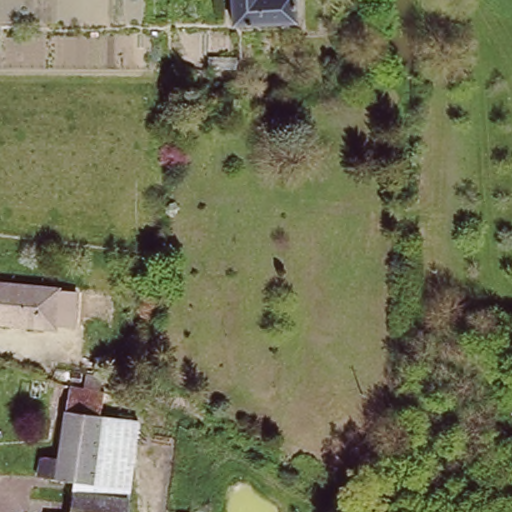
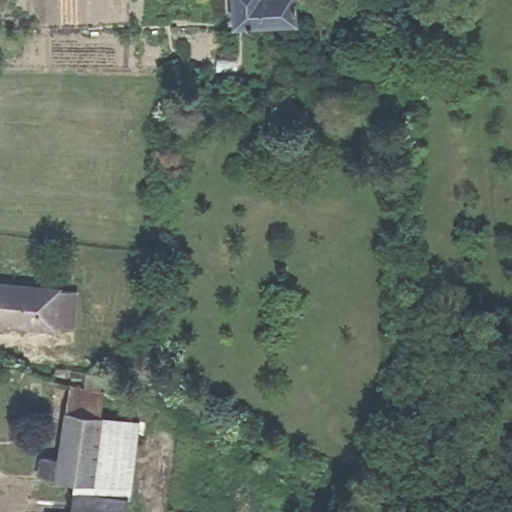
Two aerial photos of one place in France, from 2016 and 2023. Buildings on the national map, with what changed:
unchanged [(259,0),(291,0),(291,30),(232,29),(232,0),(259,0)]
unchanged [(74,330),(0,325),(0,289),(77,297),(74,330)]
unchanged [(67,418),(71,386),(110,392),(105,423),(67,418)]
unchanged [(105,423),(96,489),(68,486),(32,482),(35,454),(63,457),(67,418),(105,423)]
unchanged [(105,423),(139,428),(129,504),(94,499),(96,489),(105,423)]
unchanged [(127,512),(65,512),(67,495),(94,499),(129,504),(127,512)]
unchanged [(199,497),(199,512),(174,512),(174,497),(199,497)]

